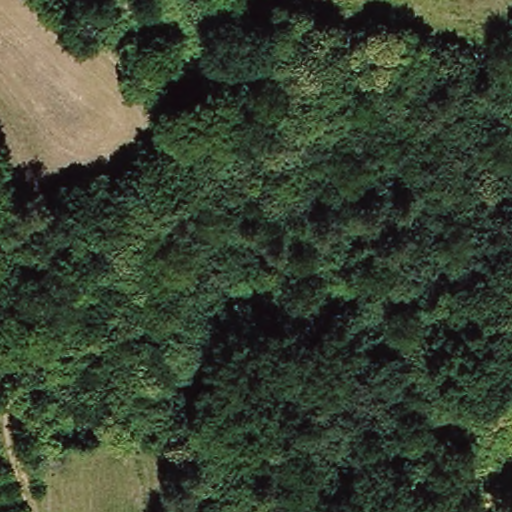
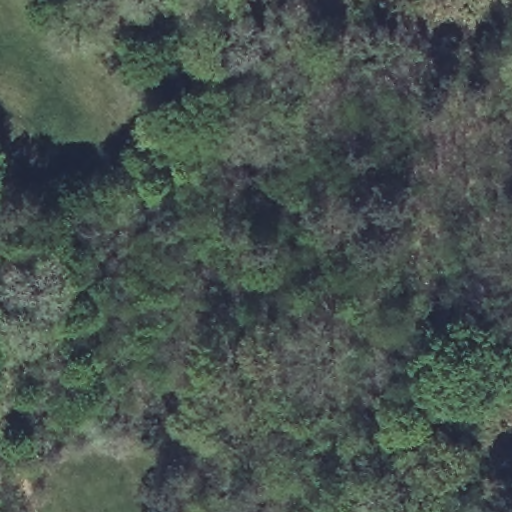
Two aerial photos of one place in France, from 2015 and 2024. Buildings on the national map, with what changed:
[]

